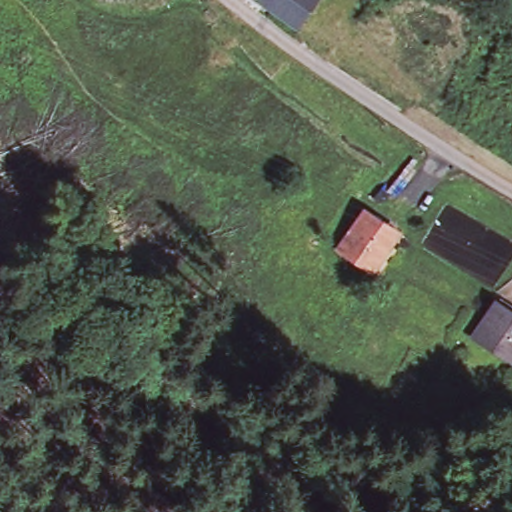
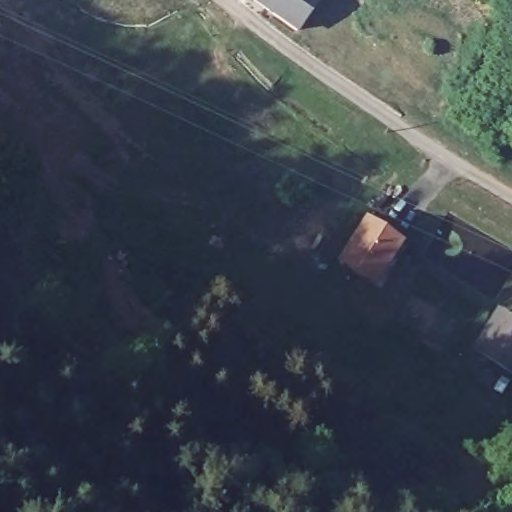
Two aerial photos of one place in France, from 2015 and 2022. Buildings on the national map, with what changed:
unchanged [(252,0),(321,0),(319,2),(298,32),(252,0)]
unchanged [(375,284),(349,266),(340,259),(358,233),(362,227),(366,221),(373,227),(401,247),(395,256),(390,263),(375,284)]
unchanged [(472,351),(492,321),(497,314),(512,324),(512,375),(511,376),(472,351)]

